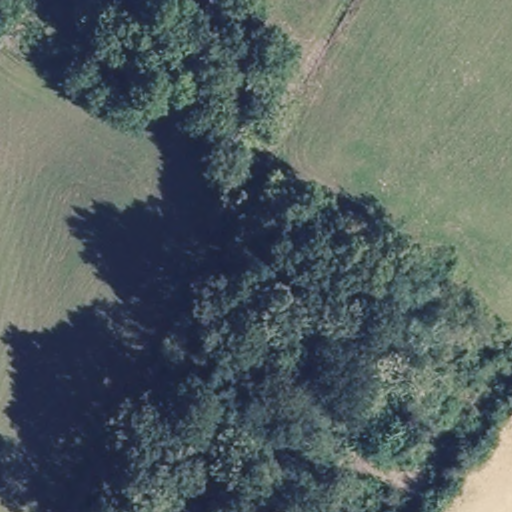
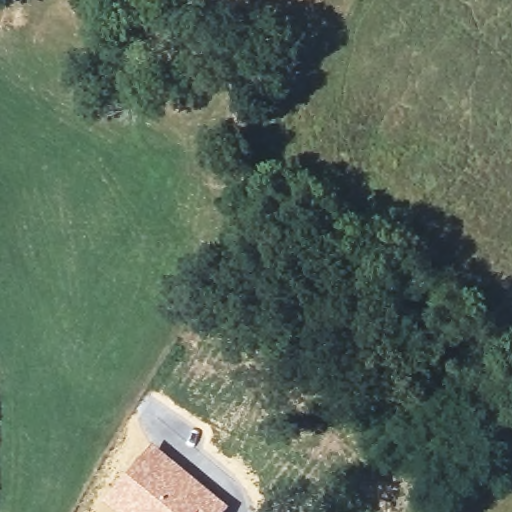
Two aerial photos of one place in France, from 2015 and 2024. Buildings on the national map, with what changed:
new [(229,506),(225,512),(113,512),(104,504),(152,443),(229,506)]

